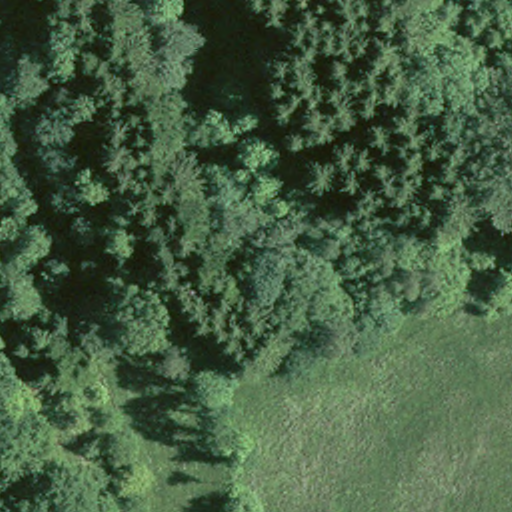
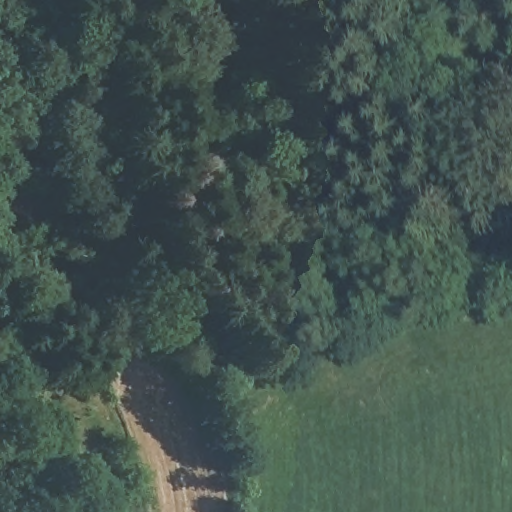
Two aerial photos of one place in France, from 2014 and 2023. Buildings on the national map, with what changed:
[]

